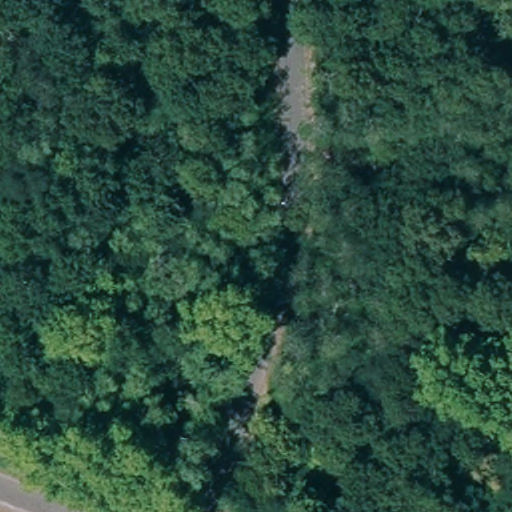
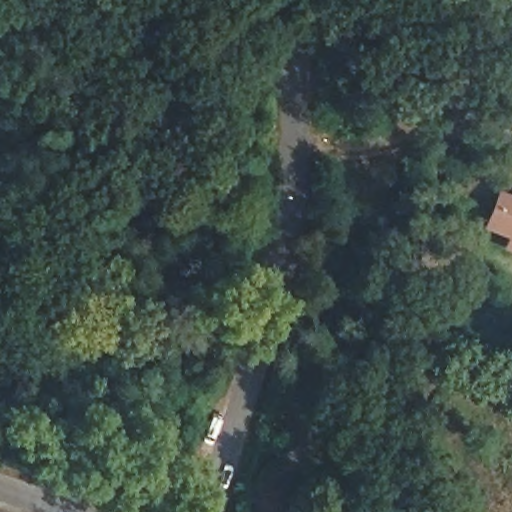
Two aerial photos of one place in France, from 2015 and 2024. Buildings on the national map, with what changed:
new [(512,196),(512,254),(502,250),(507,239),(481,229),(496,190),(512,196)]

